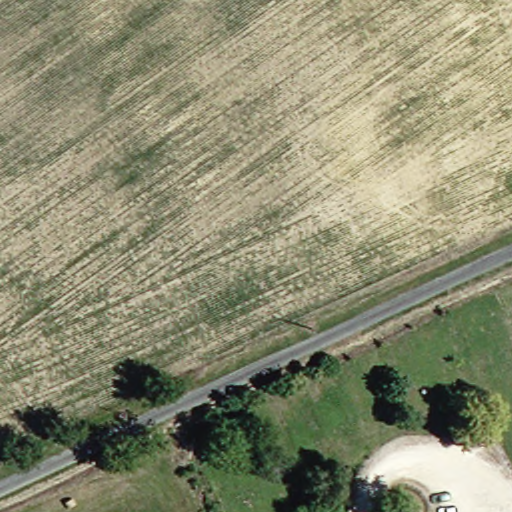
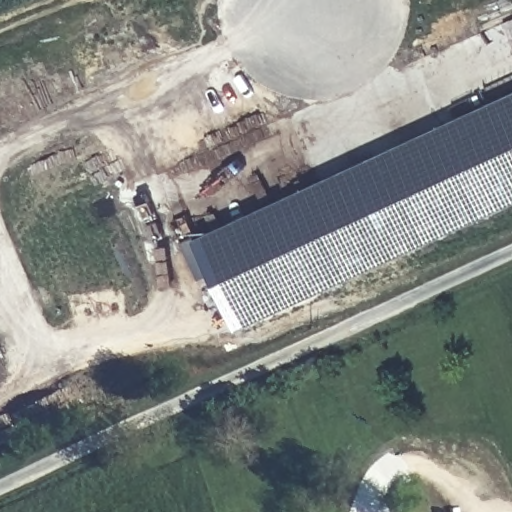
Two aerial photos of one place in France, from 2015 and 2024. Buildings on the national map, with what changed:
new [(199,236),(512,93),(512,204),(241,329),(199,236)]

